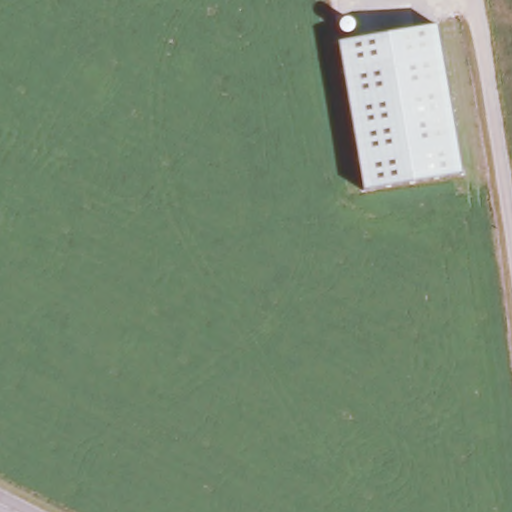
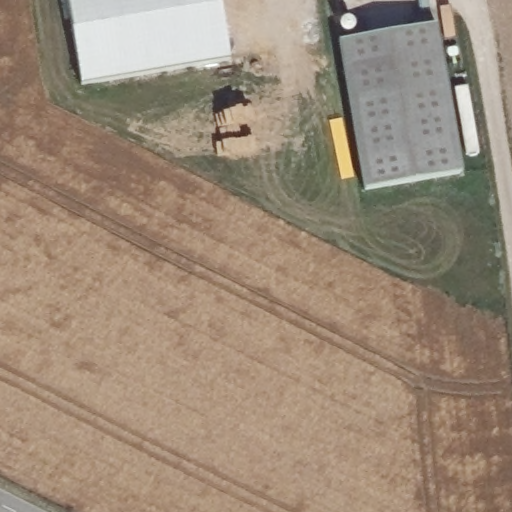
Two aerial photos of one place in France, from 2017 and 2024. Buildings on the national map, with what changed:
new [(82,86),(67,0),(212,0),(223,62),(82,86)]
unchanged [(457,173),(360,187),(339,37),(436,24),(457,173)]

